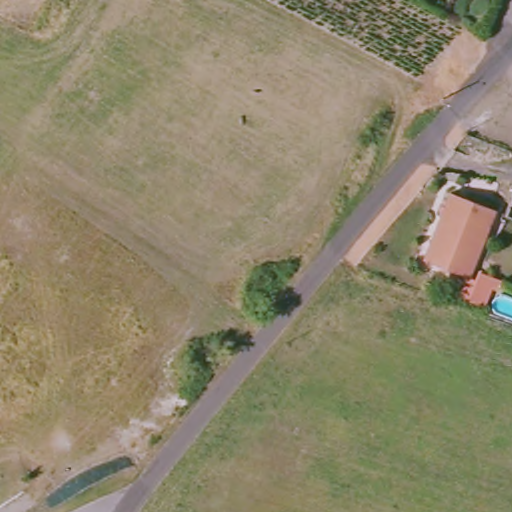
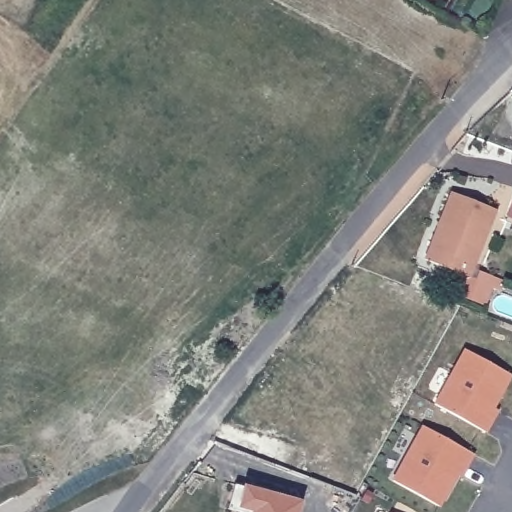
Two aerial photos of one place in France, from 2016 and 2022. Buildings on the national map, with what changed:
unchanged [(454,194),(497,211),(479,258),(434,241),(454,194)]
new [(512,201),(512,218),(507,216),(512,201)]
unchanged [(471,278),(426,260),(434,241),(479,258),(471,278)]
new [(501,281),(497,290),(491,288),(484,304),(461,296),(469,277),(477,281),(480,273),(501,281)]
new [(464,350),(511,375),(488,417),(493,419),(485,432),(434,405),(464,350)]
new [(466,468),(461,465),(439,507),(392,481),(423,426),(473,454),(466,468)]
new [(226,509),(233,485),(243,487),(299,503),(296,512),(237,512),(226,509)]

